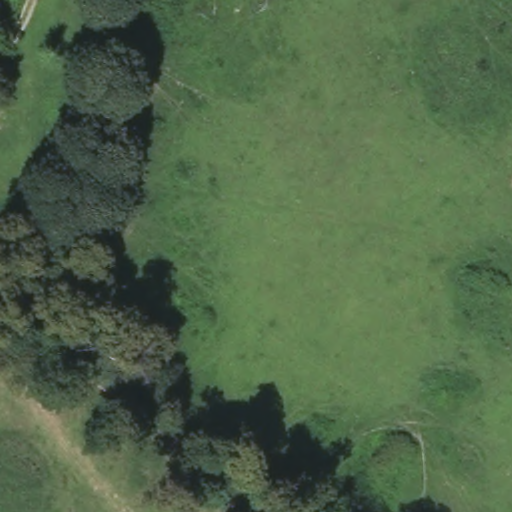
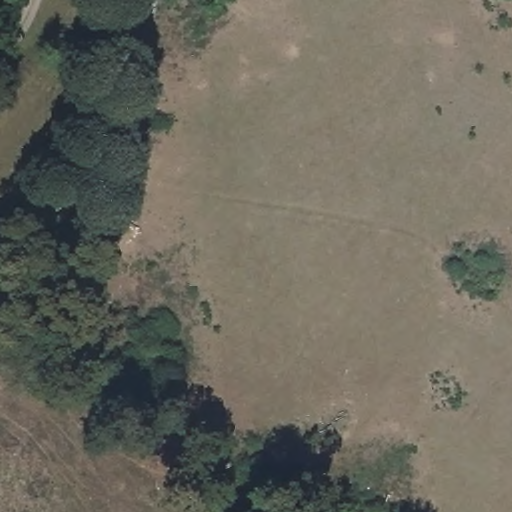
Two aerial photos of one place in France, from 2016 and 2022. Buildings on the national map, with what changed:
unchanged [(340,512),(353,495),(377,512),(340,512)]

